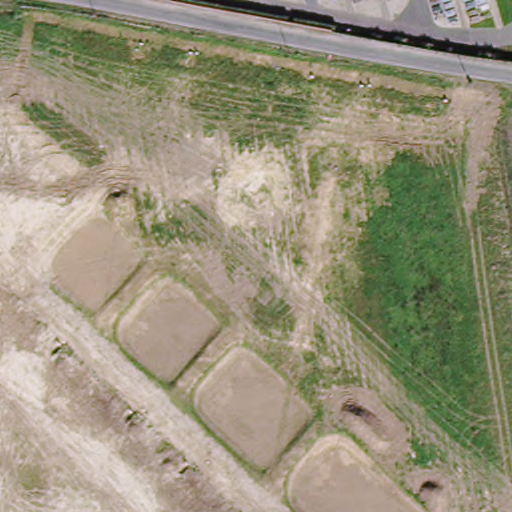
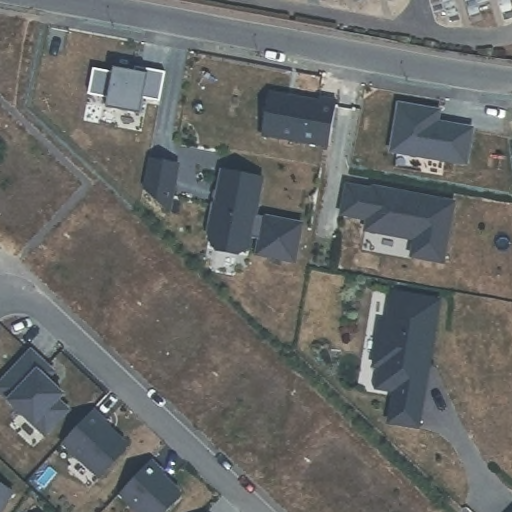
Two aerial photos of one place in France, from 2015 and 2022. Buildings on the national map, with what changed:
new [(112,72),(113,67),(133,71),(134,67),(147,70),(164,72),(158,101),(143,99),(140,115),(105,107),(107,97),(88,94),(92,69),(112,72)]
new [(328,146),(262,135),(269,94),(319,102),(319,99),(336,102),(328,146)]
new [(465,164),(390,151),(398,105),(438,111),(436,123),(471,129),(465,164)]
new [(148,159),(177,165),(168,211),(142,187),(148,159)]
new [(213,204),(214,204),(221,170),(262,179),(254,215),(301,224),(293,261),(256,254),(258,240),(250,237),(248,246),(237,254),(216,250),(208,239),(209,234),(207,234),(213,204)]
new [(372,190),(372,188),(389,191),(400,193),(453,203),(442,262),(410,256),(414,240),(364,230),(366,220),(340,215),(346,185),(372,190)]
new [(380,325),(386,326),(392,293),(438,300),(417,427),(388,422),(393,391),(376,388),(379,367),(373,366),(380,325)]
new [(45,435),(0,393),(0,383),(30,350),(53,372),(46,379),(62,394),(57,400),(68,410),(45,435)]
new [(92,410),(104,421),(103,423),(119,438),(119,445),(94,473),(62,442),(92,410)]
new [(150,460),(162,471),(160,474),(178,491),(178,498),(165,512),(139,512),(119,493),(150,460)]
new [(12,492),(0,511),(0,484),(12,492)]

